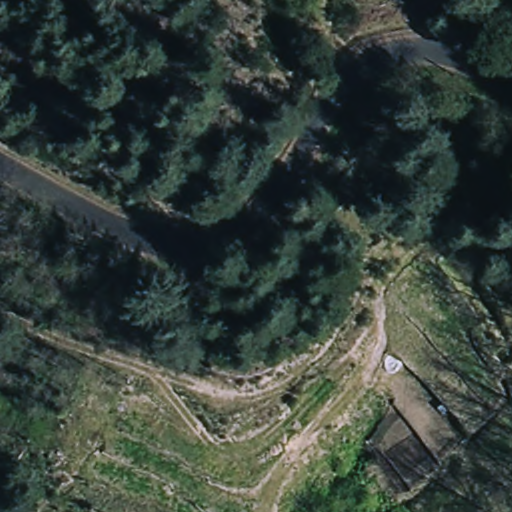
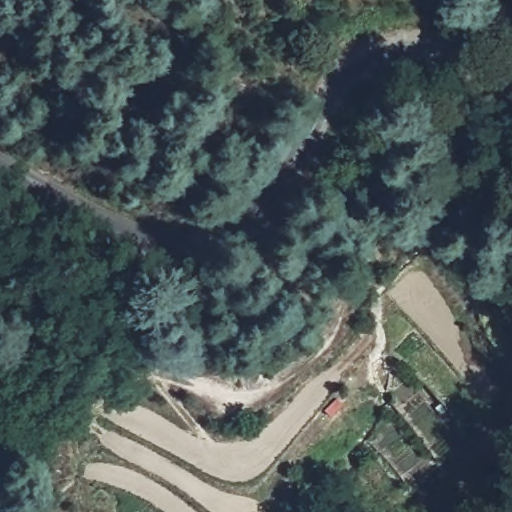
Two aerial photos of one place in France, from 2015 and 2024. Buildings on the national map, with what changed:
unchanged [(371,177),(364,199),(342,191),(351,170),(371,177)]

